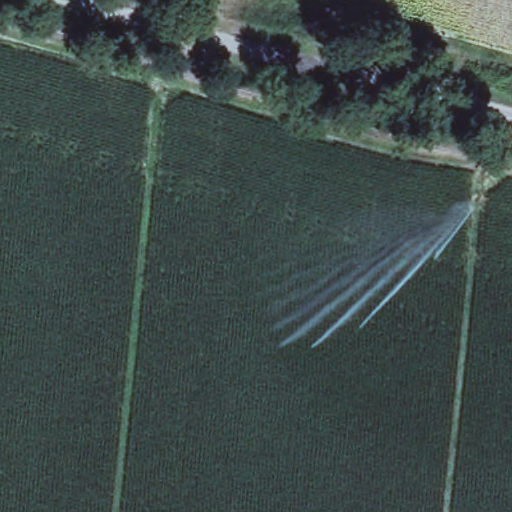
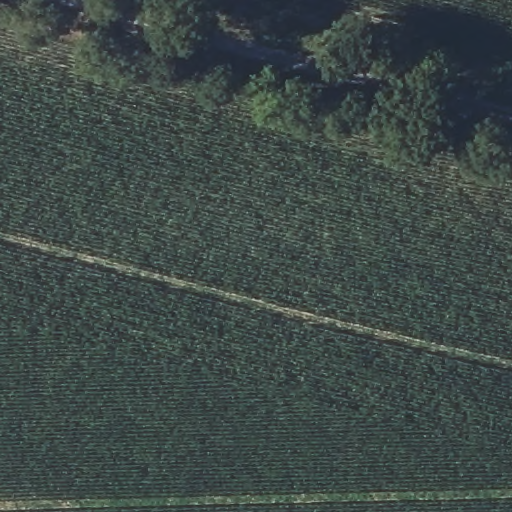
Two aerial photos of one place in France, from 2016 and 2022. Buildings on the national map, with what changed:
[]

